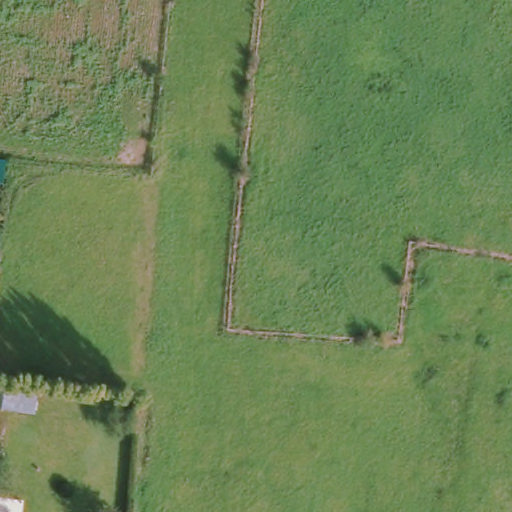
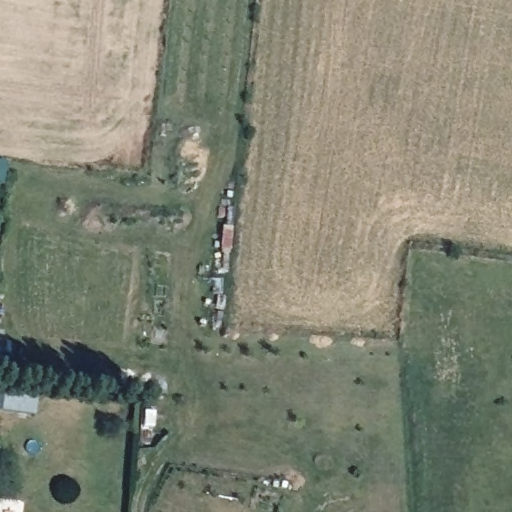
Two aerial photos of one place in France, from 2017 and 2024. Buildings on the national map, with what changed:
unchanged [(5,160),(4,176),(0,176),(0,159),(5,160)]

